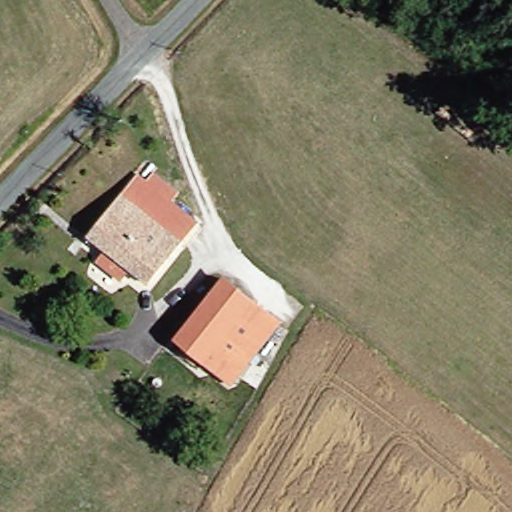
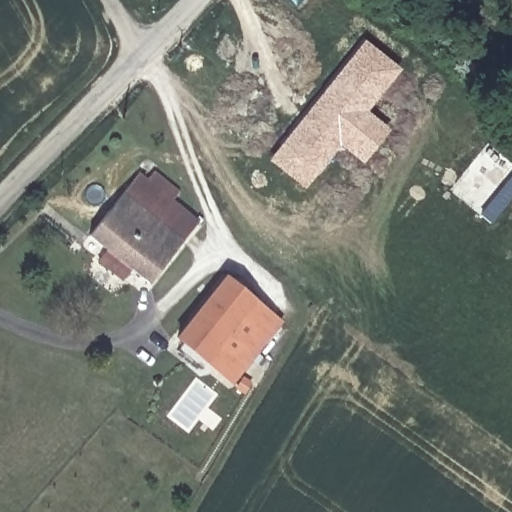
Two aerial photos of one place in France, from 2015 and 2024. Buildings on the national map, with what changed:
new [(366,111),(390,131),(362,165),(339,146),(304,190),(267,161),(363,40),(400,71),(366,111)]
unchanged [(115,260),(121,252),(101,237),(155,167),(164,174),(157,183),(204,222),(160,279),(145,270),(139,279),(115,260)]
unchanged [(233,280),(283,320),(235,379),(186,338),(233,280)]

